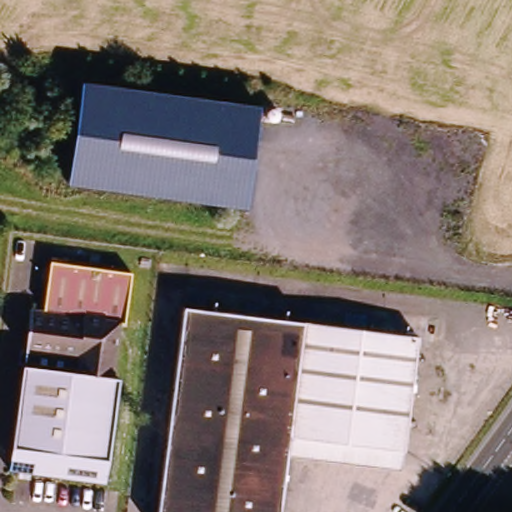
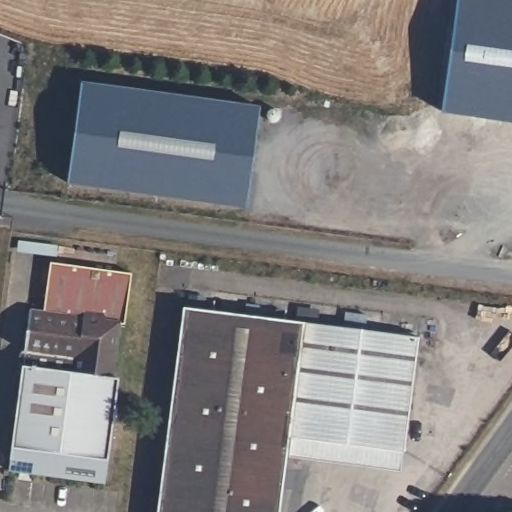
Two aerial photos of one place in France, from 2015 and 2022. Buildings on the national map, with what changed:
new [(442,110),(456,0),(512,0),(512,121),(442,110)]
unchanged [(264,107),(251,207),(72,183),(85,84),(264,107)]
unchanged [(122,379),(118,405),(107,483),(12,471),(27,366),(31,366),(33,352),(28,352),(34,311),(47,312),(55,262),(135,273),(127,325),(122,324),(115,378),(122,379)]
unchanged [(285,456),(278,512),(157,512),(183,308),(302,323),(288,436),(285,456)]
unchanged [(416,338),(402,450),(288,436),(302,323),(416,338)]
unchanged [(400,470),(285,456),(288,436),(402,450),(400,470)]

